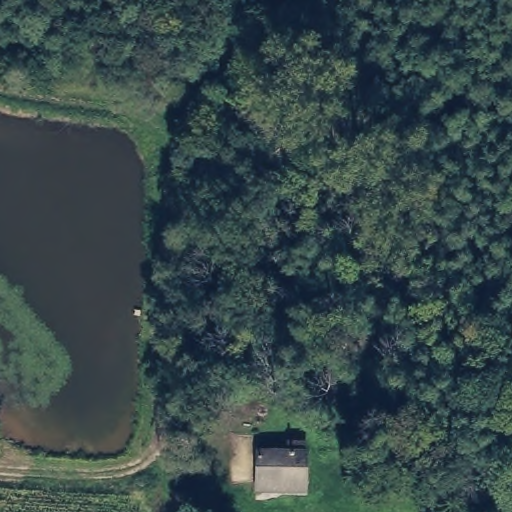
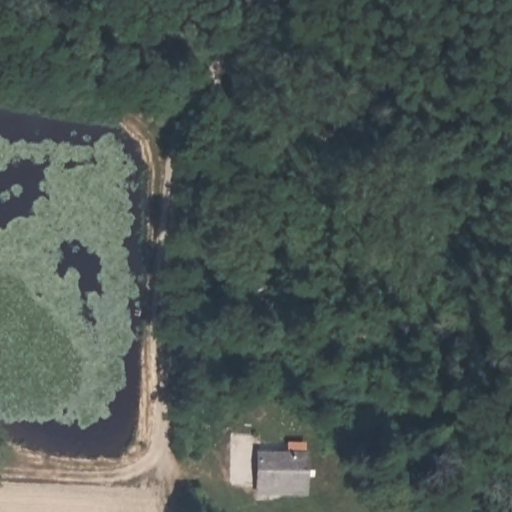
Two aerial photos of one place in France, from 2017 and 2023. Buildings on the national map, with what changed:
unchanged [(254,485),(253,457),(283,457),(284,447),(304,448),(301,485),(254,485)]

